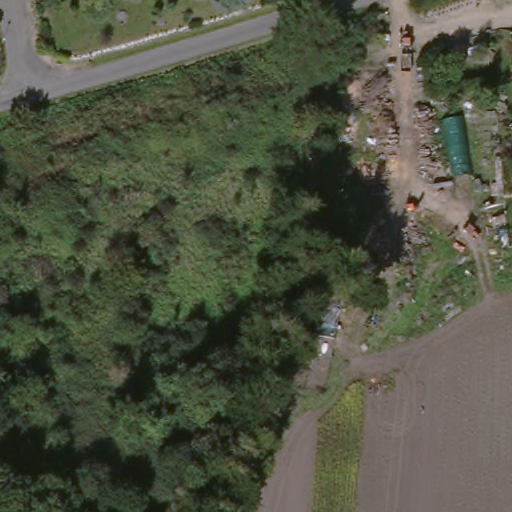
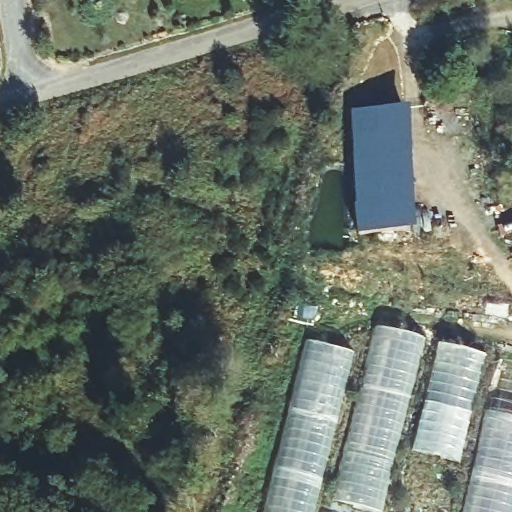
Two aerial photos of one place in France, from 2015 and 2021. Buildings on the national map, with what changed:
unchanged [(184,1),(184,0),(203,0),(203,4),(184,1)]
new [(407,103),(410,235),(359,236),(355,105),(407,103)]
new [(419,336),(378,512),(336,503),(378,328),(419,336)]
new [(307,512),(267,512),(308,342),(347,350),(307,512)]
new [(445,512),(400,512),(438,344),(480,353),(445,512)]

